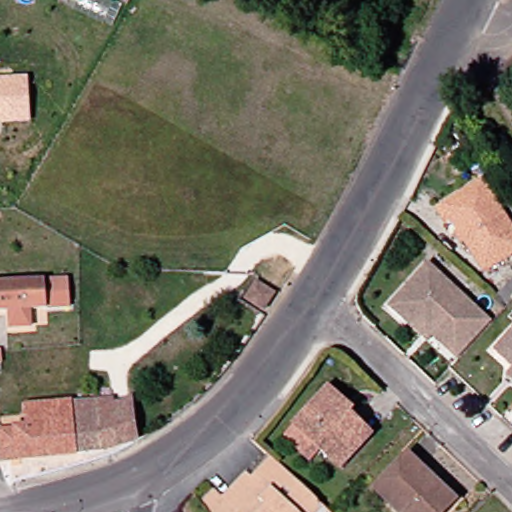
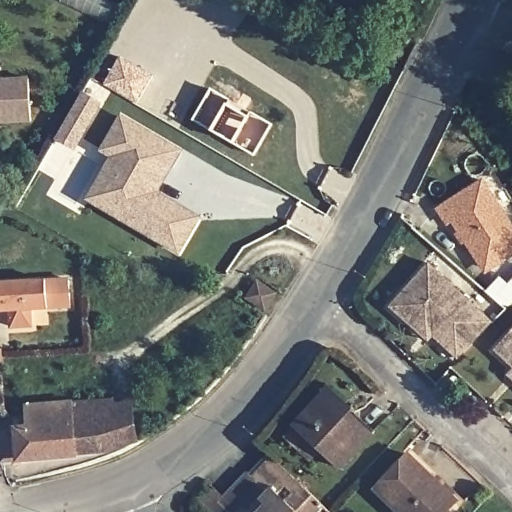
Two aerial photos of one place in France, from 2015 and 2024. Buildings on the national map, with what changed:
new [(120,55),(152,74),(136,101),(104,83),(120,55)]
unchanged [(0,125),(0,79),(28,77),(31,124),(0,125)]
new [(82,91),(100,101),(87,124),(74,145),(57,135),(70,113),(82,91)]
new [(147,235),(132,227),(95,204),(86,199),(110,156),(100,150),(119,118),(176,151),(167,166),(151,193),(167,202),(195,218),(175,251),(147,235)]
unchanged [(459,224),(453,228),(444,213),(490,185),(512,221),(512,262),(493,274),(481,261),(459,224)]
unchanged [(426,322),(420,328),(405,312),(390,296),(431,255),(491,317),(461,345),(455,352),(426,322)]
new [(485,291),(500,275),(509,282),(512,279),(512,302),(505,309),(485,291)]
unchanged [(74,306),(34,309),(35,325),(15,327),(14,310),(0,311),(0,283),(72,278),(74,306)]
unchanged [(257,280),(277,293),(265,311),(245,298),(257,280)]
unchanged [(512,331),(512,360),(497,346),(512,331)]
unchanged [(3,348),(4,362),(0,362),(0,348),(3,348)]
unchanged [(512,369),(512,373),(510,372),(512,369)]
unchanged [(342,466),(297,424),(325,397),(332,388),(355,410),(351,414),(372,434),(342,466)]
unchanged [(32,430),(30,408),(79,404),(80,405),(119,402),(120,411),(139,404),(141,445),(116,453),(112,455),(10,465),(6,432),(32,430)]
unchanged [(378,488),(409,455),(457,501),(447,512),(402,512),(378,488)]
unchanged [(206,506),(220,491),(229,499),(252,475),(257,480),(276,460),(319,500),(330,510),(329,512),(213,512),(206,506)]

